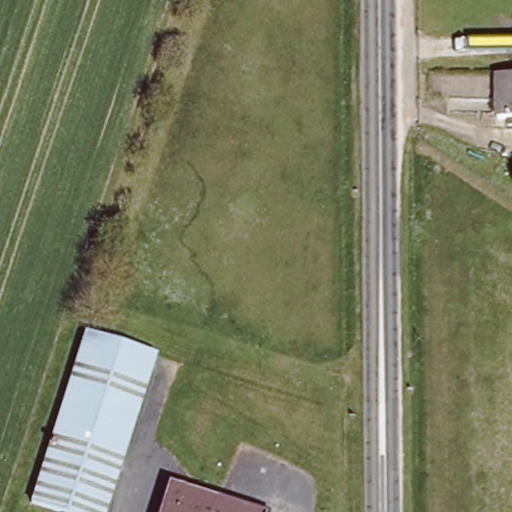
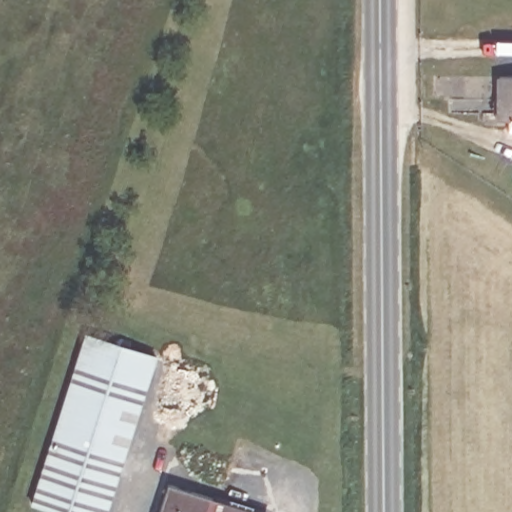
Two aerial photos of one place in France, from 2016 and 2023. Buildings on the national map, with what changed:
unchanged [(502,120),(503,76),(512,76),(512,120),(502,120)]
unchanged [(107,512),(71,512),(31,500),(84,332),(157,356),(107,512)]
unchanged [(247,512),(157,512),(164,487),(247,512)]

